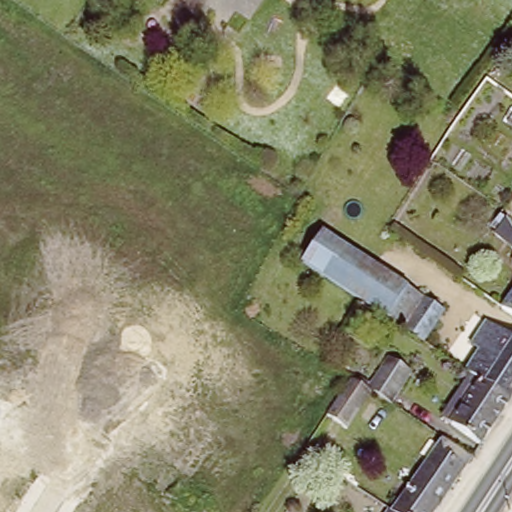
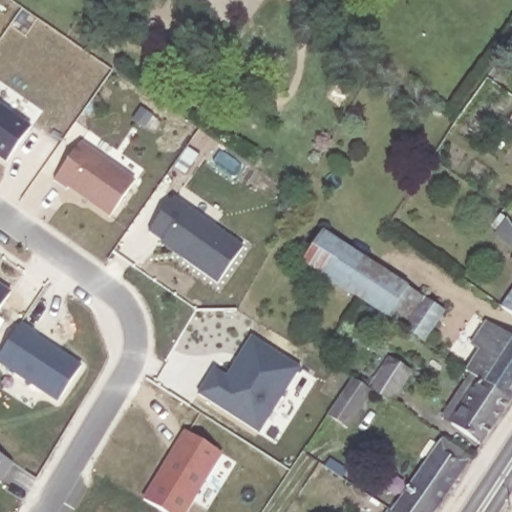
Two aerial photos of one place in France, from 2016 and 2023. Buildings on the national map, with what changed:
new [(5,163),(0,159),(0,105),(30,127),(5,163)]
new [(108,218),(67,189),(65,191),(53,181),(79,141),(134,180),(108,218)]
new [(217,285),(159,244),(160,242),(146,233),(171,197),(242,248),(217,285)]
unchanged [(348,281),(344,287),(304,260),(325,230),(364,257),(364,258),(348,281)]
unchanged [(512,232),(512,242),(507,239),(512,232)]
unchanged [(406,283),(387,312),(359,298),(352,293),(344,287),(348,281),(364,258),(364,257),(406,283)]
unchanged [(425,295),(427,292),(447,306),(425,338),(387,312),(406,283),(425,295)]
unchanged [(512,285),(512,311),(500,303),(512,285)]
new [(0,307),(0,286),(10,292),(0,307)]
unchanged [(465,366),(479,348),(471,343),(487,318),(512,334),(512,398),(474,371),(465,366)]
new [(56,403),(0,366),(0,353),(19,324),(80,366),(56,403)]
new [(197,396),(212,368),(225,376),(249,336),(300,369),(258,434),(197,396)]
unchanged [(392,352),(414,367),(392,398),(374,385),(350,421),(342,417),(330,410),(352,378),(367,381),(370,383),(392,352)]
unchanged [(480,444),(450,423),(452,419),(444,412),(461,387),(470,393),(475,387),(467,382),(474,371),(512,398),(480,444)]
new [(160,512),(141,501),(182,431),(222,455),(187,512),(160,512)]
unchanged [(472,455),(435,512),(399,512),(392,507),(442,434),(472,455)]
new [(12,463),(0,482),(0,455),(12,463)]
unchanged [(399,512),(389,512),(392,507),(399,512)]

